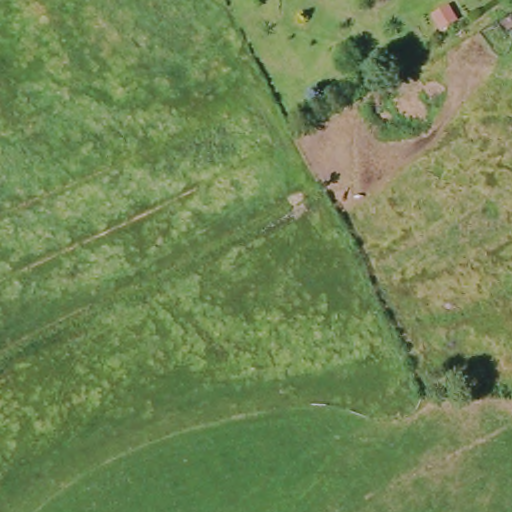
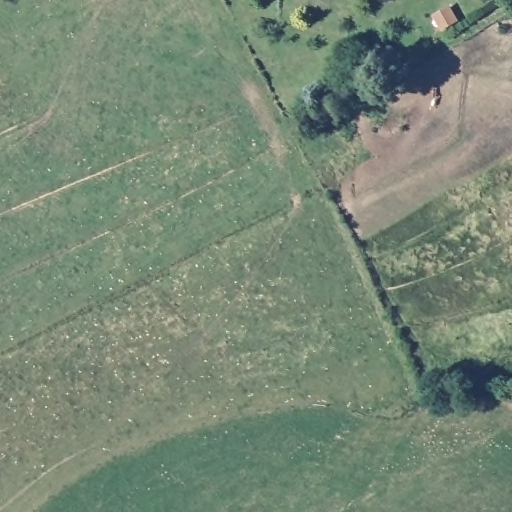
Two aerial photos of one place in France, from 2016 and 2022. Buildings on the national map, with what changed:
unchanged [(511,0),(512,1),(512,11),(512,12),(503,4),(506,0),(511,0)]
unchanged [(449,11),(455,25),(439,32),(433,19),(449,11)]

